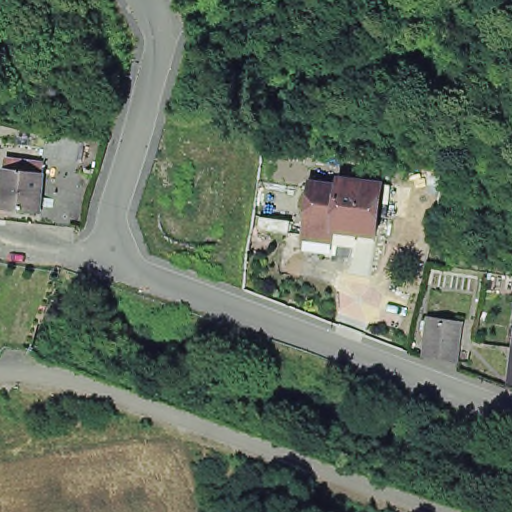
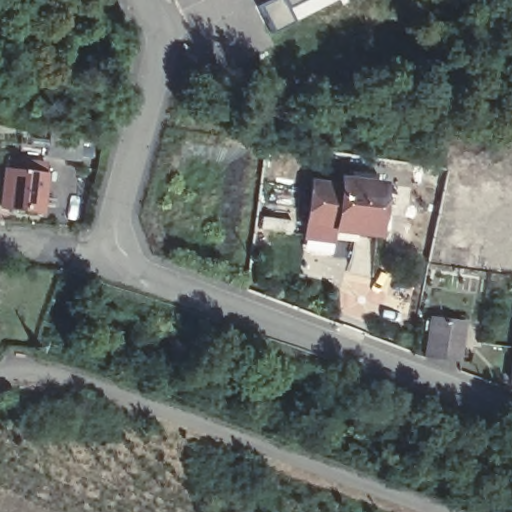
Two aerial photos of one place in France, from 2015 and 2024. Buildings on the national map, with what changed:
new [(272,34),(259,7),(275,0),(342,0),(342,1),(272,34)]
unchanged [(48,126),(85,130),(81,159),(42,155),(48,126)]
unchanged [(278,152),(276,152),(273,152),(264,150),(265,142),(274,143),(279,144),(278,152)]
unchanged [(41,216),(6,212),(8,197),(2,197),(4,177),(5,177),(6,164),(43,168),(43,181),(44,181),(41,216)]
unchanged [(314,234),(303,258),(276,255),(283,224),(301,227),(311,164),(392,178),(382,241),(314,234)]
unchanged [(473,317),(469,365),(424,358),(427,318),(473,317)]
unchanged [(512,335),(512,379),(506,378),(511,344),(512,335)]

